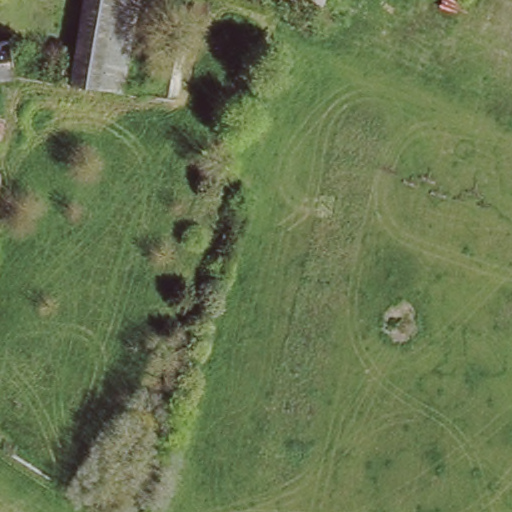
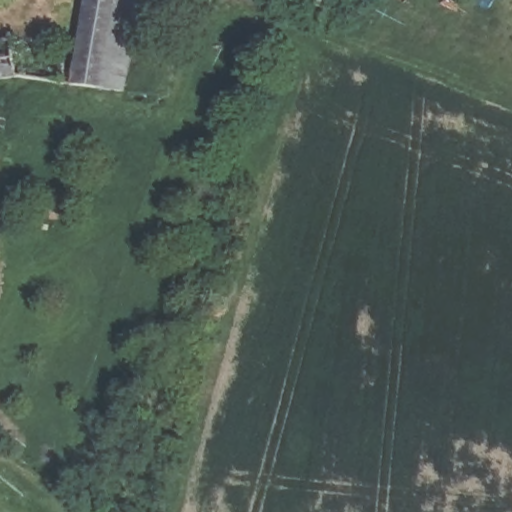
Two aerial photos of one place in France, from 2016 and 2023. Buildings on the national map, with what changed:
unchanged [(138,0),(121,85),(111,85),(66,80),(82,0),(138,0)]
unchanged [(297,0),(324,0),(320,10),(297,0)]
unchanged [(0,81),(0,36),(6,35),(16,80),(0,81)]

